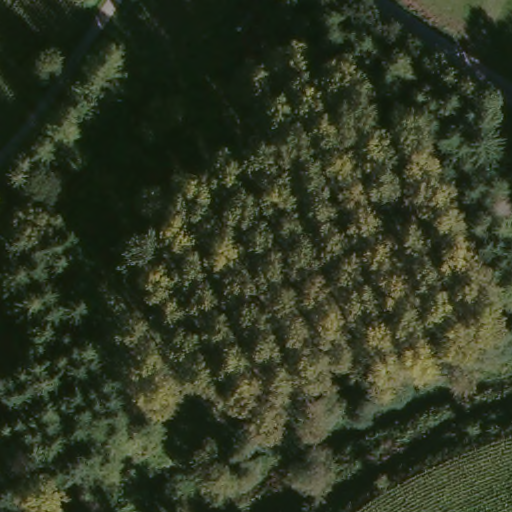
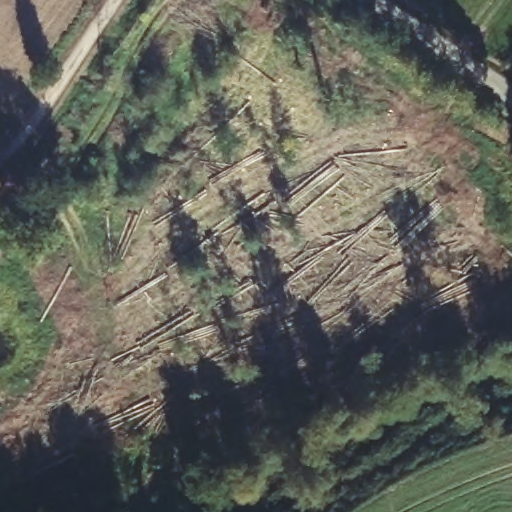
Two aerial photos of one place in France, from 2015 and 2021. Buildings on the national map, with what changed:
[]

